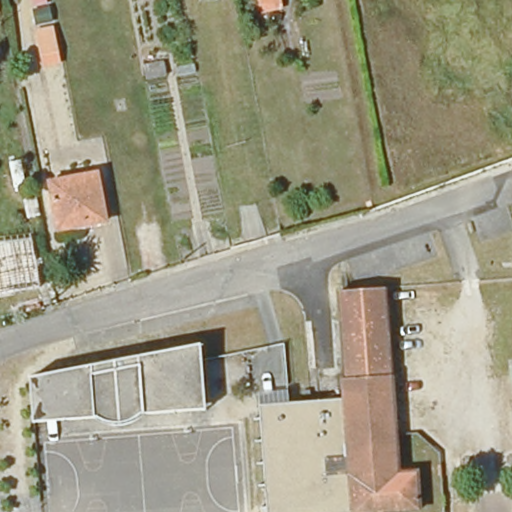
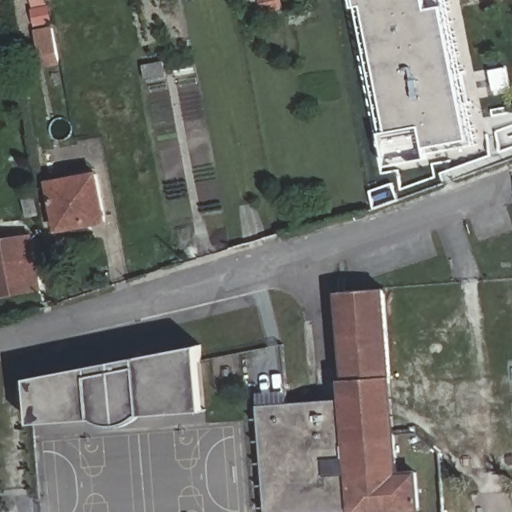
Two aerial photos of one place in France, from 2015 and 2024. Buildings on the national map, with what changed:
unchanged [(260,14),(258,0),(278,0),(281,10),(260,14)]
new [(422,147),(418,126),(385,132),(357,0),(445,0),(473,138),(422,147)]
unchanged [(63,68),(42,70),(34,33),(54,29),(63,68)]
new [(423,157),(386,165),(381,132),(385,132),(418,126),(422,147),(423,157)]
unchanged [(55,230),(47,184),(84,177),(93,176),(102,221),(92,222),(55,230)]
unchanged [(0,255),(3,255),(7,254),(7,247),(29,243),(40,290),(11,296),(0,299),(0,255)]
unchanged [(342,402),(335,295),(382,293),(398,471),(415,470),(419,510),(381,512),(342,512),(334,402),(342,402)]
unchanged [(202,352),(206,416),(167,417),(165,358),(202,352)]
unchanged [(165,358),(167,417),(60,422),(55,376),(165,358)]
unchanged [(55,376),(60,422),(44,422),(28,423),(25,380),(39,378),(55,376)]
unchanged [(334,402),(342,512),(293,512),(285,407),(334,402)]
unchanged [(293,512),(261,512),(254,409),(285,407),(293,512)]

